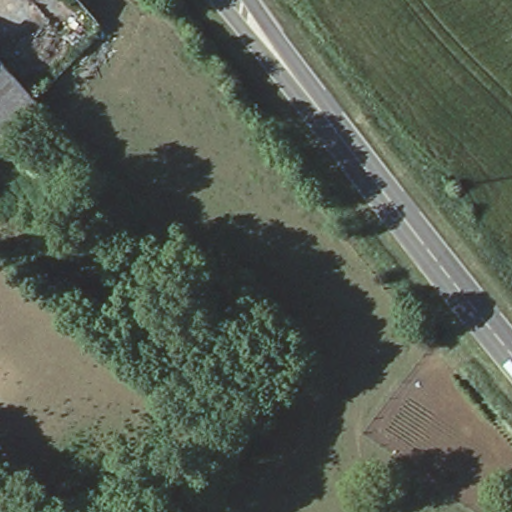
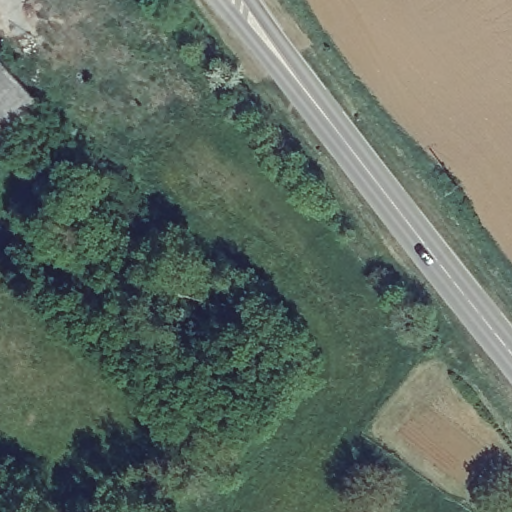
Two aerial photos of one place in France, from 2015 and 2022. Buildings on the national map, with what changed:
unchanged [(0,122),(0,59),(32,95),(0,122)]

